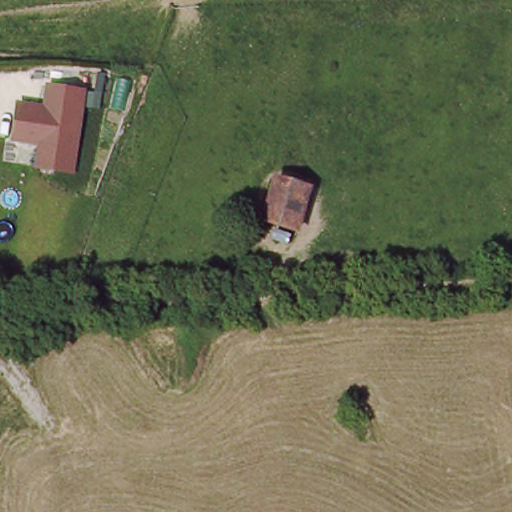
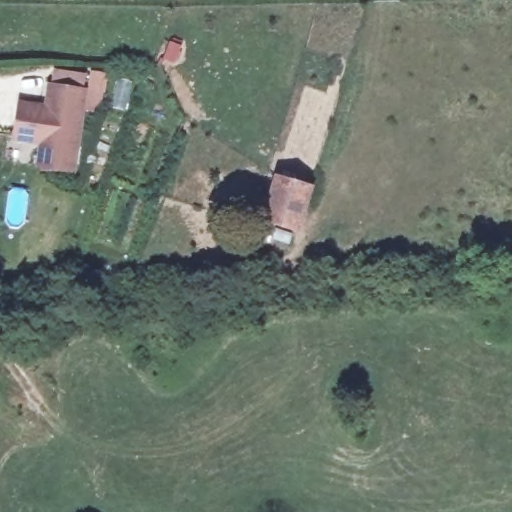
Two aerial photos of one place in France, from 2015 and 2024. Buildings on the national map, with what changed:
unchanged [(84,89),(71,173),(35,168),(38,145),(12,139),(19,103),(43,104),(50,85),(84,89)]
unchanged [(311,179),(296,225),(263,217),(275,170),(311,179)]

